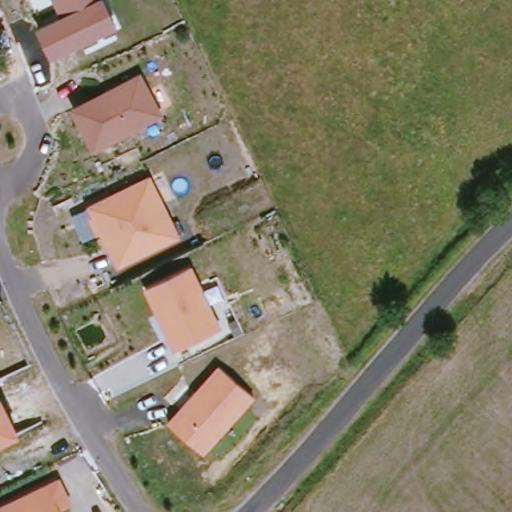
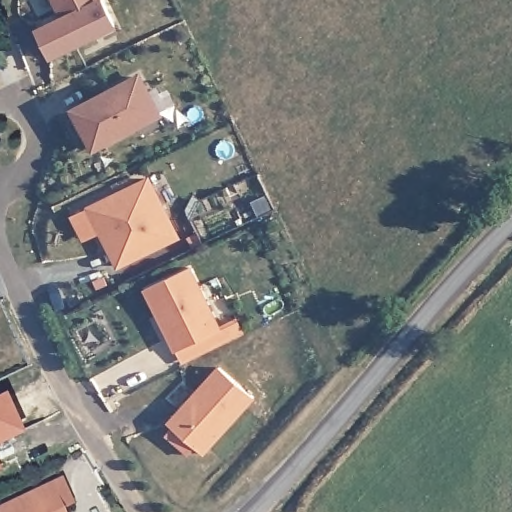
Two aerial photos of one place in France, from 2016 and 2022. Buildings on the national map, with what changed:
unchanged [(52,61),(38,30),(63,18),(54,0),(105,0),(106,0),(119,29),(52,61)]
unchanged [(95,154),(72,110),(142,74),(164,117),(95,154)]
unchanged [(118,270),(89,207),(154,177),(181,240),(118,270)]
unchanged [(176,353),(146,291),(194,269),(223,331),(176,353)]
unchanged [(207,457),(169,424),(220,368),(256,400),(207,457)]
unchanged [(21,438),(0,447),(0,399),(2,399),(21,438)]
unchanged [(74,508),(63,512),(0,512),(0,508),(60,480),(74,508)]

